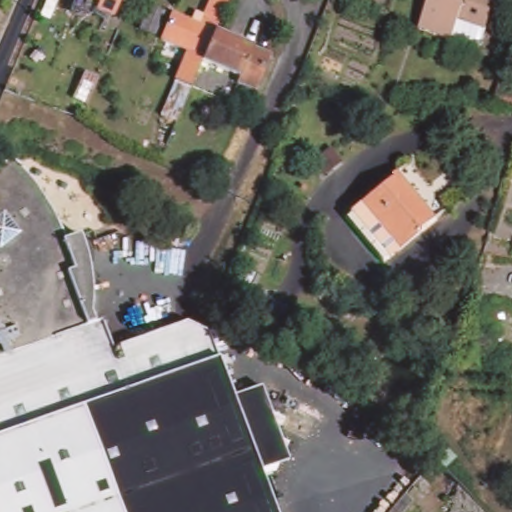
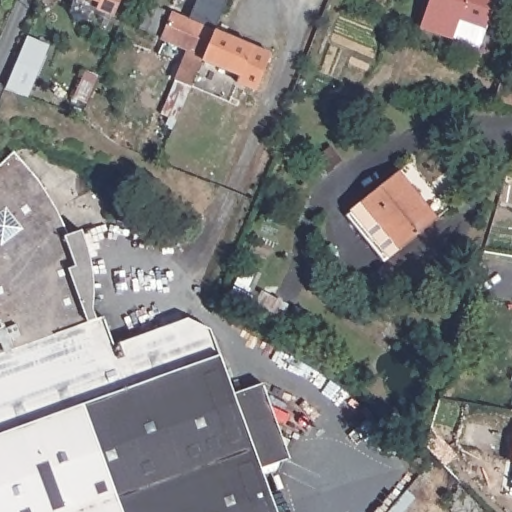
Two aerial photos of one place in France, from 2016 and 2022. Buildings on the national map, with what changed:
unchanged [(109,16),(97,10),(99,2),(95,0),(115,0),(109,16)]
unchanged [(164,4),(159,17),(144,12),(148,0),(155,0),(164,4)]
unchanged [(195,20),(199,9),(208,13),(213,0),(228,0),(220,20),(217,29),(216,30),(214,29),(204,55),(206,56),(204,62),(195,84),(186,107),(182,118),(166,111),(191,47),(167,37),(177,12),(195,20)]
unchanged [(310,7),(298,2),(299,0),(313,0),(310,7)]
unchanged [(487,29),(461,21),(456,40),(423,30),(431,0),(494,0),(487,29)]
unchanged [(278,75),(282,77),(277,92),(258,84),(257,87),(248,82),(241,79),(232,102),(195,84),(204,62),(206,56),(216,30),(261,50),(283,60),(278,75)]
unchanged [(105,41),(96,65),(83,59),(93,35),(105,41)]
new [(27,36),(37,41),(35,49),(43,52),(26,95),(6,87),(27,36)]
unchanged [(503,92),(500,107),(470,97),(473,82),(503,92)]
unchanged [(109,327),(119,354),(191,329),(208,337),(266,512),(0,512),(0,183),(26,156),(33,165),(43,180),(52,194),(57,204),(65,221),(74,242),(84,239),(90,237),(97,254),(99,267),(100,292),(100,317),(104,328),(109,327)]
unchanged [(401,170),(439,215),(405,247),(367,202),(401,170)]
unchanged [(367,202),(405,247),(389,262),(351,216),(367,202)]
new [(512,457),(512,467),(511,467),(512,457)]

